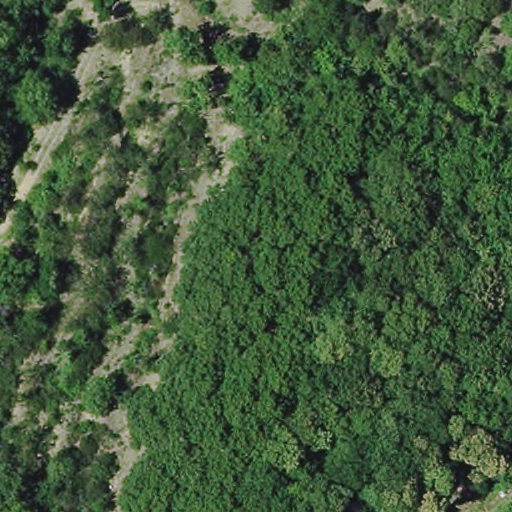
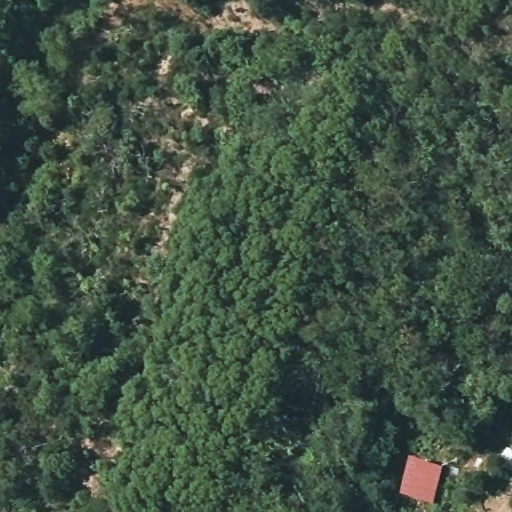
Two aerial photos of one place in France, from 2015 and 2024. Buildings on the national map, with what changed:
new [(411,460),(443,467),(436,505),(402,498),(411,460)]

